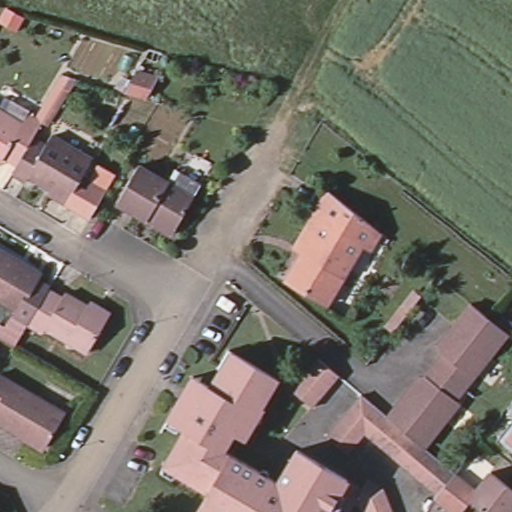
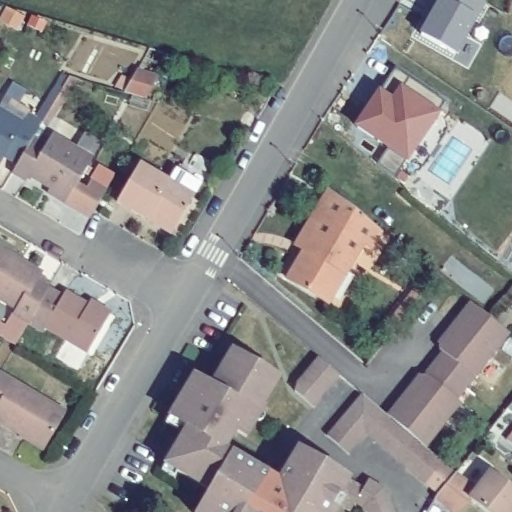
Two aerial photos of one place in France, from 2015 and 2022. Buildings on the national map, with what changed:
new [(432,12),(427,9),(432,0),(479,0),(483,2),(454,54),(421,35),(432,12)]
unchanged [(50,129),(91,152),(77,179),(85,184),(90,176),(105,185),(93,206),(89,213),(65,199),(66,196),(48,185),(51,181),(44,177),(43,179),(28,171),(25,176),(11,168),(17,158),(3,150),(1,153),(0,154),(0,106),(21,118),(26,109),(35,114),(60,69),(68,71),(75,73),(47,121),(41,117),(32,133),(44,140),(50,129)]
new [(403,158),(354,127),(393,69),(440,102),(403,158)]
unchanged [(136,70),(155,77),(142,98),(123,92),(136,70)]
unchanged [(147,219),(117,201),(138,164),(193,196),(174,229),(171,233),(147,219)]
unchanged [(374,231),(365,249),(357,244),(310,215),(324,191),(374,231)]
unchanged [(323,303),(282,279),(295,258),(298,260),(303,253),(291,246),(310,215),(357,244),(323,303)]
unchanged [(88,301),(109,313),(104,322),(86,352),(44,327),(42,332),(27,323),(26,325),(12,317),(16,311),(0,302),(0,261),(4,263),(6,258),(36,276),(32,283),(46,291),(45,293),(58,301),(61,296),(83,309),(88,301)]
unchanged [(489,319),(508,333),(464,388),(433,364),(442,352),(438,349),(438,344),(470,303),(489,319)]
unchanged [(161,417),(163,412),(188,371),(197,376),(206,381),(216,362),(213,361),(223,343),(228,346),(272,372),(256,401),(258,402),(241,431),(230,425),(219,444),(181,422),(173,418),(170,422),(161,417)]
unchanged [(294,391),(294,386),(301,378),(310,368),(318,358),(339,375),(331,385),(322,396),(313,406),(294,391)]
unchanged [(366,432),(357,443),(348,453),(327,435),(336,425),(344,415),(353,404),(362,394),(383,412),(387,415),(423,371),(426,373),(433,364),(464,388),(455,399),(459,401),(423,446),(435,455),(445,464),(456,473),(452,478),(472,495),(490,471),(512,489),(512,510),(511,511),(512,512),(486,512),(472,500),(462,512),(453,512),(437,498),(440,495),(428,485),(418,476),(406,467),(397,459),(387,451),(376,442),(366,432)]
unchanged [(39,451),(13,436),(16,431),(0,422),(0,373),(11,379),(63,410),(39,451)]
unchanged [(156,464),(159,459),(181,422),(219,444),(226,448),(204,485),(171,466),(168,472),(156,464)]
unchanged [(358,505),(351,510),(350,512),(344,512),(333,506),(330,511),(330,512),(192,512),(190,510),(204,485),(226,448),(273,476),(292,443),(343,473),(359,482),(363,474),(378,483),(383,497),(389,510),(389,512),(360,512),(358,507),(358,505)]

